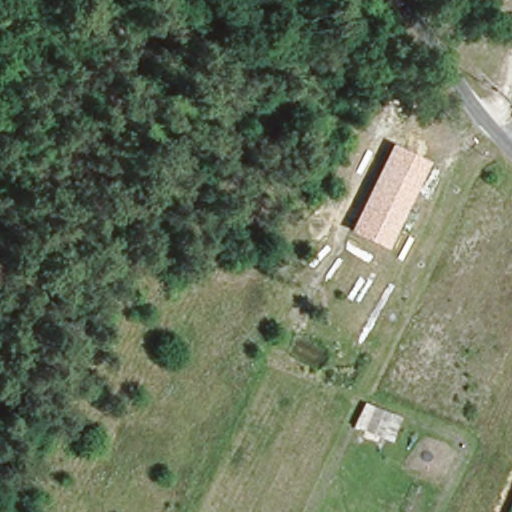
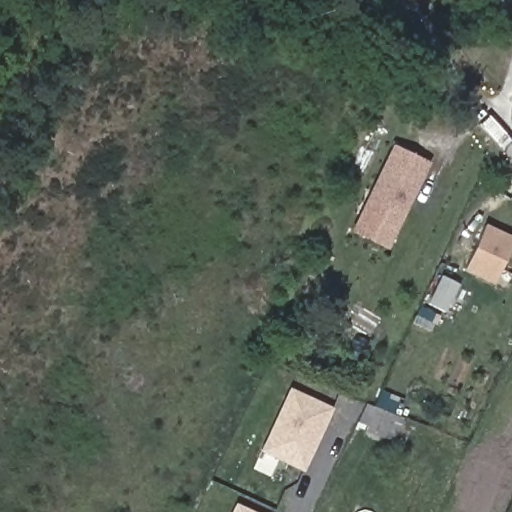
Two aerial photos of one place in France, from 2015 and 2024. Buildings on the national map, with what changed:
unchanged [(387,248),(352,231),(393,146),(430,161),(387,248)]
new [(512,235),(512,253),(499,282),(470,269),(488,225),(512,235)]
new [(366,403),(373,406),(380,390),(400,398),(393,415),(403,419),(393,443),(356,427),(366,403)]
new [(330,409),(301,469),(262,451),(290,391),(330,409)]
new [(235,503),(254,512),(231,512),(235,503)]

